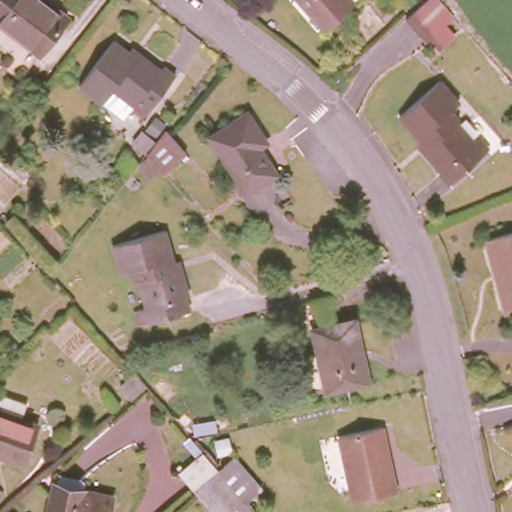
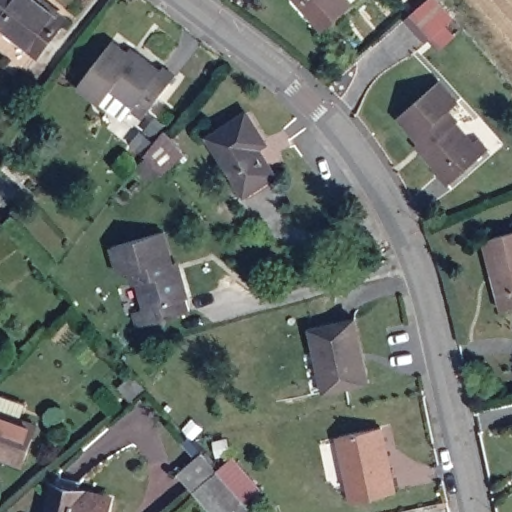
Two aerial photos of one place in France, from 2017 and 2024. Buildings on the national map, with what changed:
unchanged [(27,65),(0,44),(0,0),(51,0),(67,12),(27,65)]
unchanged [(315,31),(286,0),(335,0),(341,7),(315,31)]
unchanged [(406,16),(424,0),(440,0),(443,4),(453,16),(427,40),(416,28),(406,16)]
unchanged [(130,58),(133,54),(155,71),(157,68),(170,77),(138,118),(126,109),(128,106),(106,89),(96,102),(73,86),(107,41),(130,58)]
unchanged [(448,102),(439,110),(448,121),(446,123),(463,142),(468,138),(478,150),(439,184),(428,173),(430,171),(413,151),(416,148),(389,116),(429,80),(448,102)]
unchanged [(262,143),(255,148),(271,175),(241,194),(205,137),(242,112),(262,143)]
unchanged [(158,175),(140,155),(128,145),(138,132),(150,142),(158,131),(180,154),(158,175)]
unchanged [(486,283),(493,281),(490,268),(483,270),(475,240),(512,229),(512,305),(495,310),(486,283)]
unchanged [(170,272),(176,271),(184,299),(181,300),(185,312),(132,326),(128,311),(140,308),(133,283),(129,284),(125,270),(113,274),(105,246),(159,232),(170,272)]
unchanged [(358,353),(353,355),(360,382),(320,391),(306,330),(350,320),(358,353)]
unchanged [(121,387),(135,375),(146,388),(132,401),(121,387)]
unchanged [(32,425),(19,464),(0,458),(0,414),(32,425)]
unchanged [(391,492),(347,502),(332,437),(377,427),(391,492)]
unchanged [(190,490),(189,491),(173,473),(198,453),(213,470),(227,458),(255,489),(240,501),(250,512),(209,512),(190,490)]
unchanged [(103,512),(45,512),(50,487),(106,500),(103,512)]

